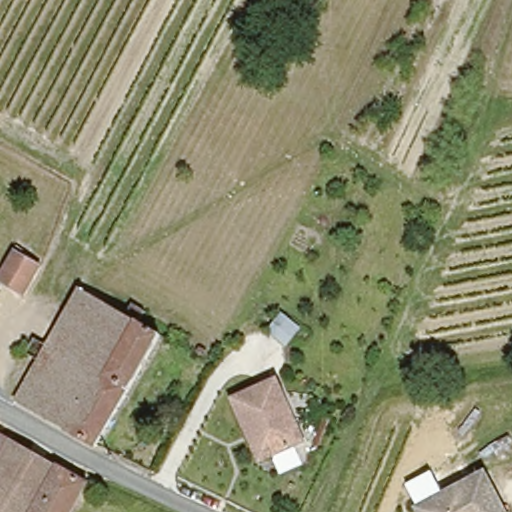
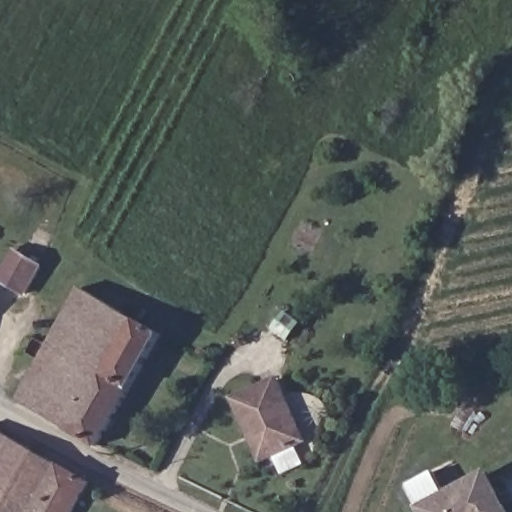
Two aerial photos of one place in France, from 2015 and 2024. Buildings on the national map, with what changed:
unchanged [(27,293),(4,279),(19,253),(43,266),(27,293)]
unchanged [(79,288),(125,315),(130,305),(144,313),(138,322),(160,334),(96,445),(16,398),(39,358),(26,350),(35,334),(49,342),(79,288)]
unchanged [(247,430),(232,399),(276,378),(306,439),(270,456),(262,460),(247,430)]
unchanged [(75,512),(0,512),(0,502),(8,488),(0,484),(0,430),(90,481),(75,512)]
unchanged [(436,501),(488,475),(496,492),(506,512),(419,512),(418,510),(436,501)]
unchanged [(0,502),(0,484),(8,488),(0,502)]

